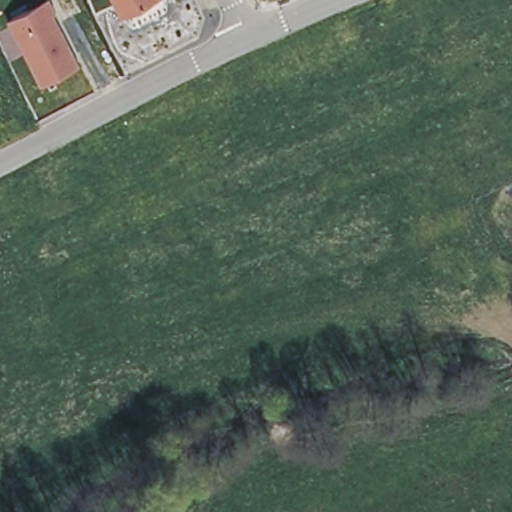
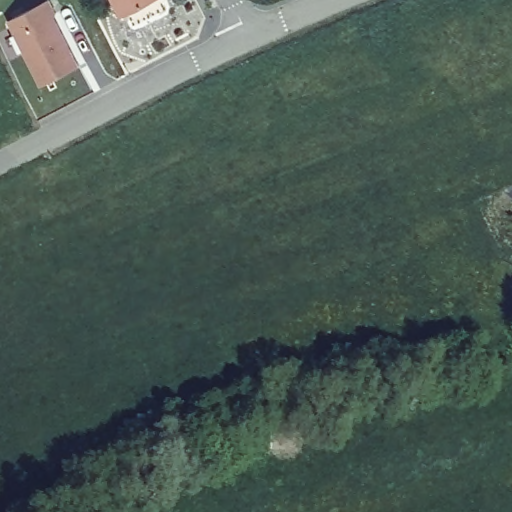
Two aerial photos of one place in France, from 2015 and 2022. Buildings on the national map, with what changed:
unchanged [(49,0),(56,15),(53,16),(80,67),(41,86),(8,22),(49,0)]
unchanged [(123,14),(115,0),(151,0),(123,14)]

